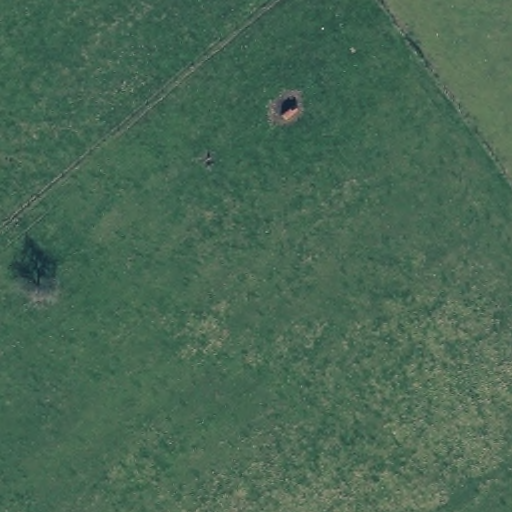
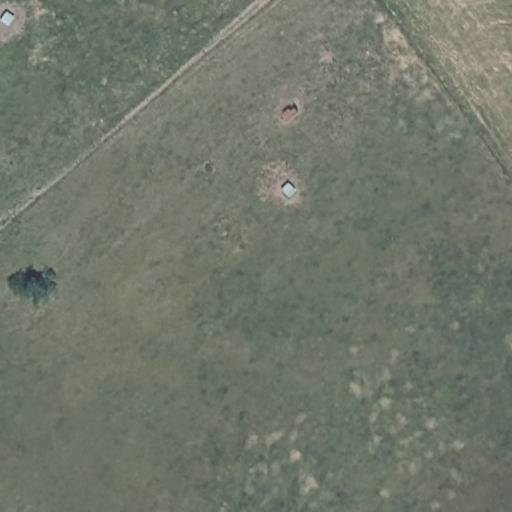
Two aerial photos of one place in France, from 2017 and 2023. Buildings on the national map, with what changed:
[]

